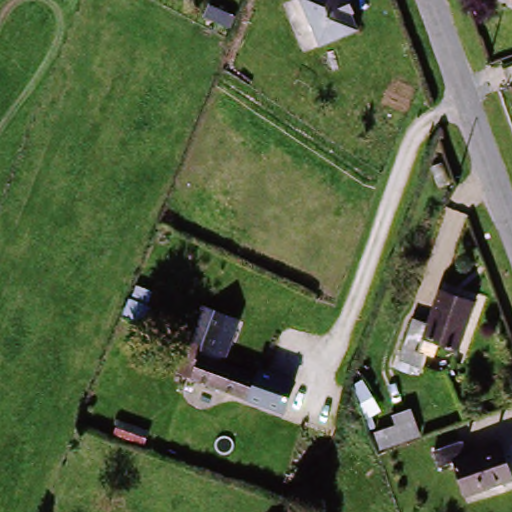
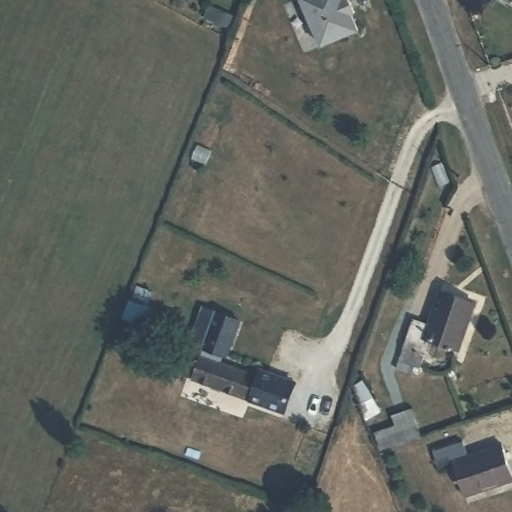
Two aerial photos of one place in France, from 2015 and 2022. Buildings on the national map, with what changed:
unchanged [(210,0),(218,0),(242,11),(232,29),(204,24),(210,0)]
unchanged [(356,10),(351,12),(359,27),(323,46),(299,0),(351,0),(356,10)]
unchanged [(452,363),(420,349),(415,362),(402,357),(412,330),(424,335),(440,295),(475,309),(452,363)]
unchanged [(219,359),(215,358),(214,364),(252,375),(255,369),(290,381),(279,413),(172,375),(183,344),(195,310),(208,314),(231,322),(219,359)]
unchanged [(409,417),(417,442),(380,456),(374,439),(396,430),(393,422),(409,417)]
unchanged [(462,456),(501,444),(510,471),(457,489),(446,463),(434,467),(429,452),(456,442),(462,456)]

